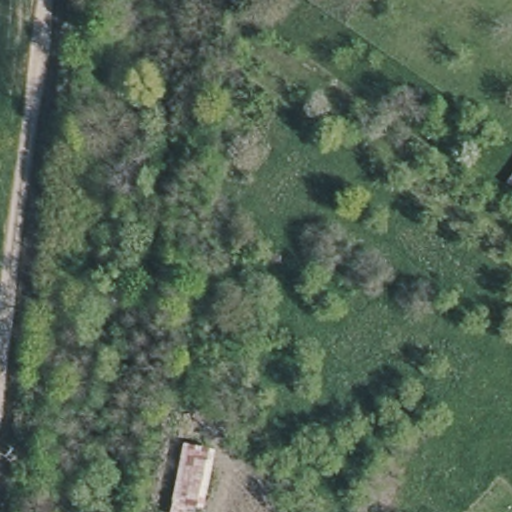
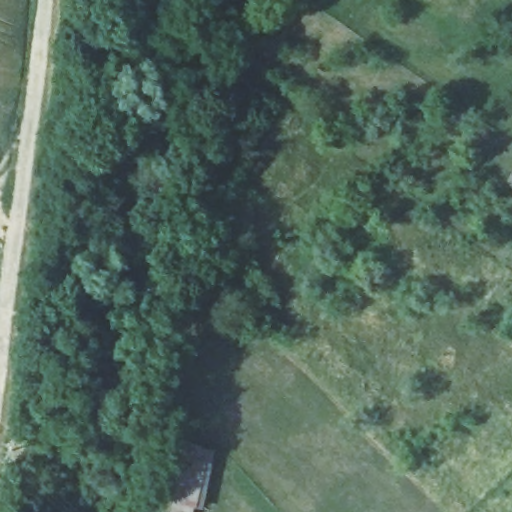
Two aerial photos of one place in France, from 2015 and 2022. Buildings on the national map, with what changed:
unchanged [(512,169),(512,187),(502,180),(512,169)]

